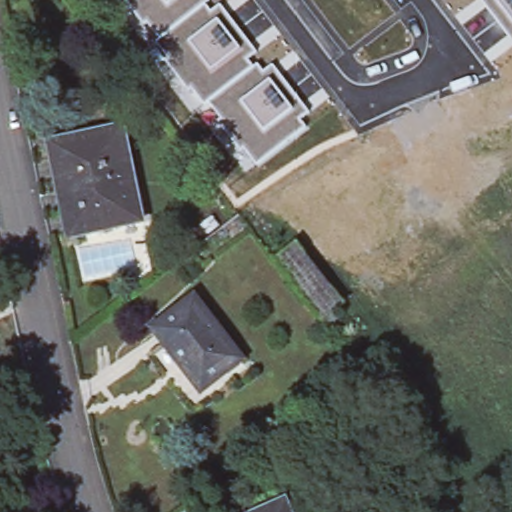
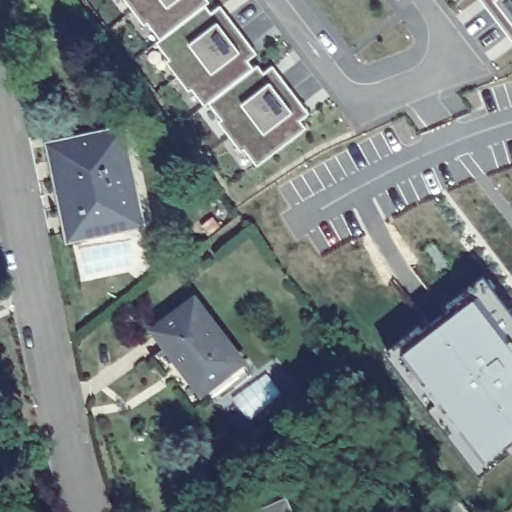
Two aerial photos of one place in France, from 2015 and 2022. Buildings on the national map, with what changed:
unchanged [(205,7),(210,12),(220,6),(257,52),(247,60),(255,69),(258,67),(264,72),(272,66),(309,112),(299,121),(305,127),(257,163),(244,147),(242,149),(221,124),(225,120),(210,102),(205,105),(190,83),(185,87),(167,63),(170,60),(156,44),(162,38),(147,20),(144,22),(127,1),(128,0),(208,0),(210,2),(205,7)]
unchanged [(483,0),(512,0),(512,39),(483,0)]
unchanged [(143,214),(70,227),(62,182),(68,181),(60,136),(126,124),(143,214)]
demolished [(297,240),(349,300),(323,322),(267,254),(297,240)]
new [(385,350),(418,325),(424,330),(454,308),(450,303),(487,275),(512,306),(512,441),(509,443),(512,448),(512,452),(480,475),(385,350)]
unchanged [(238,365),(227,374),(226,372),(206,388),(192,371),(187,375),(167,346),(170,343),(157,327),(192,300),(240,361),(237,363),(238,365)]
unchanged [(284,497),(291,512),(251,512),(284,497)]
unchanged [(462,504),(468,512),(449,512),(462,504)]

